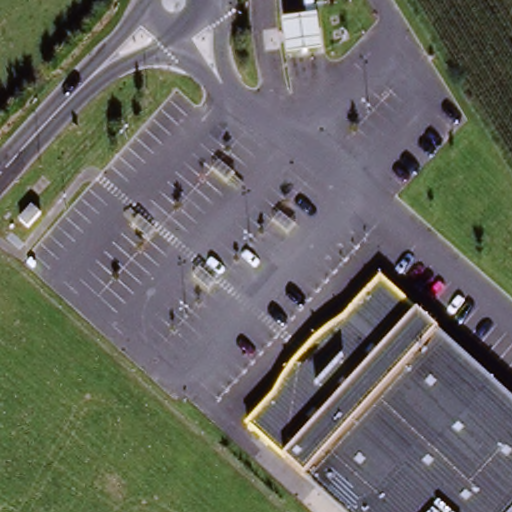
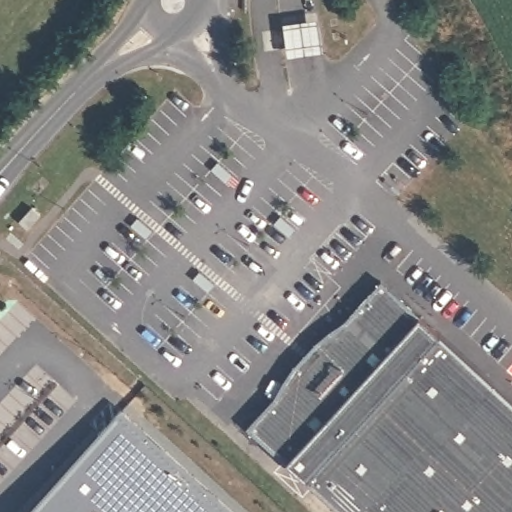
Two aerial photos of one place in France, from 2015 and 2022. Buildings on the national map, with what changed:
new [(315,15),(320,46),(285,51),(282,20),(315,15)]
unchanged [(30,223),(21,215),(33,203),(42,211),(30,223)]
demolished [(0,231),(12,241),(0,254),(0,231)]
unchanged [(277,396),(296,362),(315,343),(345,320),(382,280),(512,399),(512,512),(342,512),(245,428),(277,396)]
new [(26,512),(120,409),(233,512),(26,512)]

